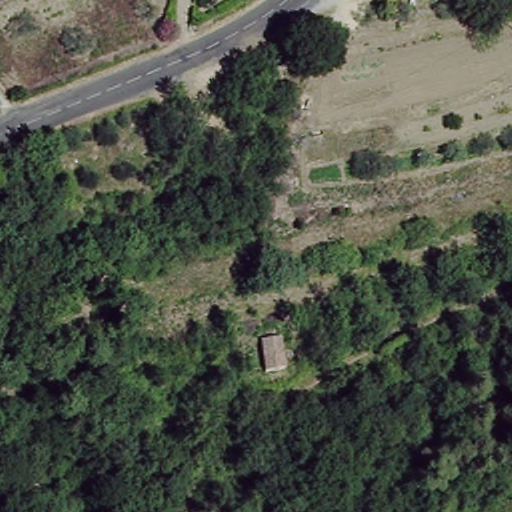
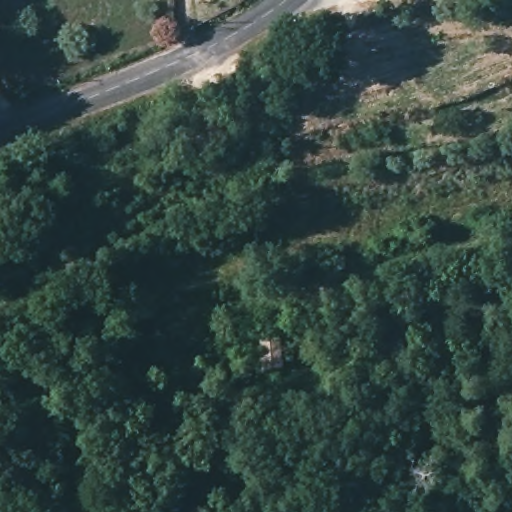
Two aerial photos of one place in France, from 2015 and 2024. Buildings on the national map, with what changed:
unchanged [(280,344),(287,375),(265,379),(260,350),(280,344)]

